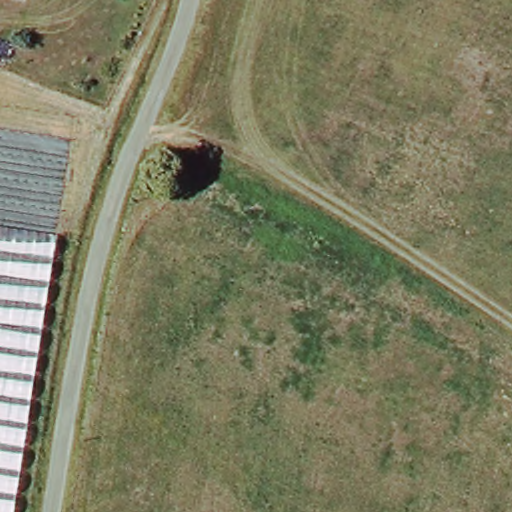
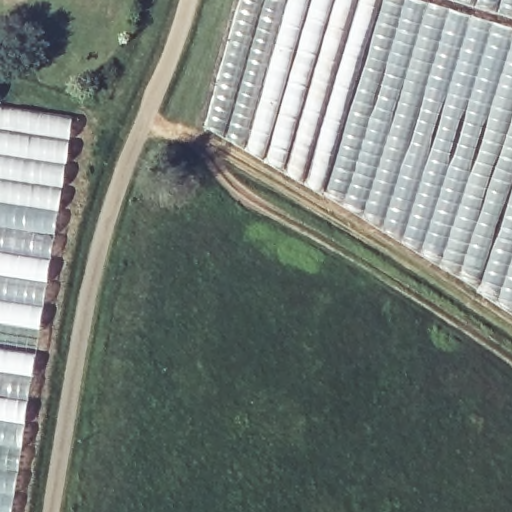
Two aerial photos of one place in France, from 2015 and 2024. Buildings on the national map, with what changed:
new [(238,0),(286,0),(272,55),(242,149),(202,127),(238,0)]
new [(272,55),(286,0),(512,0),(512,185),(479,285),(457,274),(460,269),(421,250),(377,221),(301,183),(242,149),(272,55)]
new [(13,512),(0,512),(0,105),(75,117),(13,512)]
new [(479,285),(512,185),(512,309),(508,307),(477,290),(479,285)]

